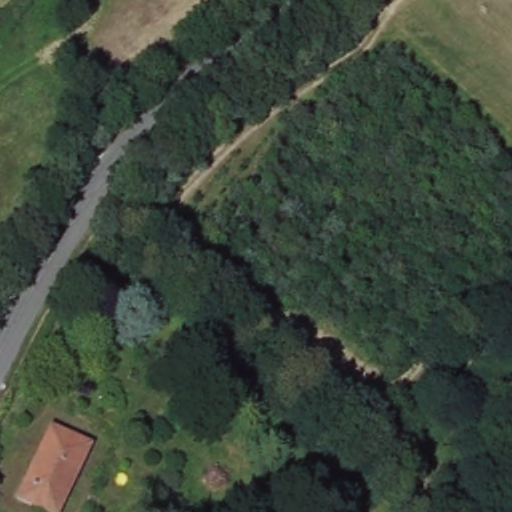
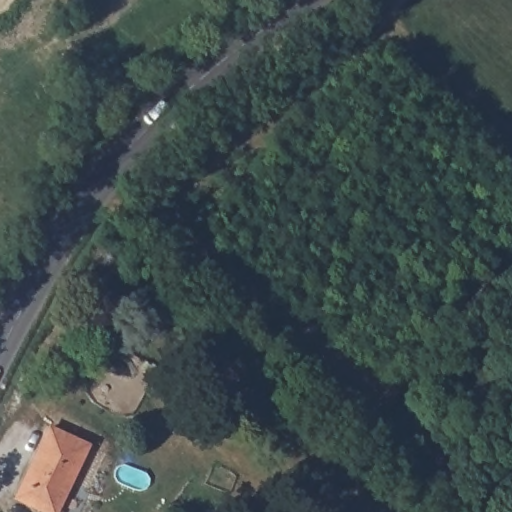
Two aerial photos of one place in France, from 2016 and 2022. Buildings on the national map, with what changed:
unchanged [(62,426),(97,445),(63,512),(50,512),(25,500),(62,426)]

